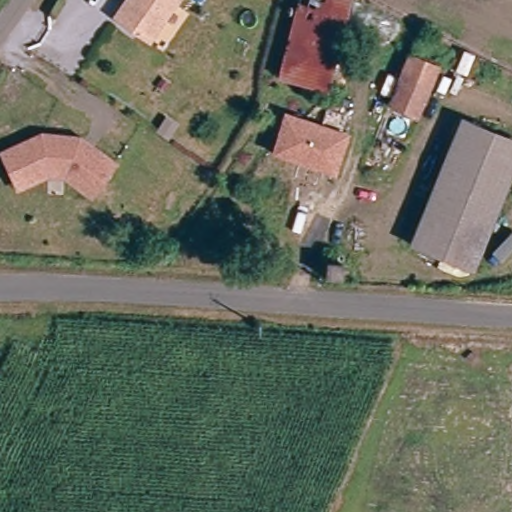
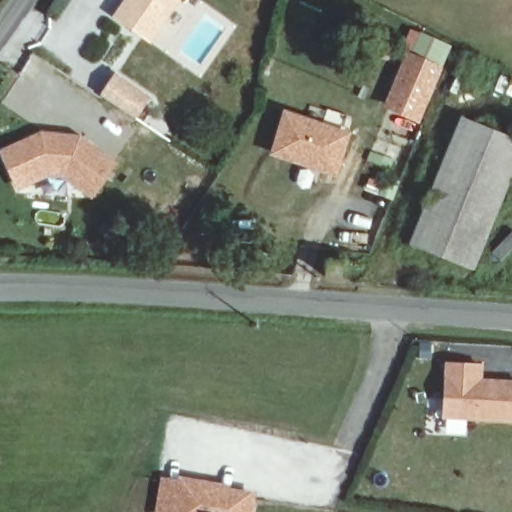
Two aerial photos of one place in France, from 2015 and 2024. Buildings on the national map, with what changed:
unchanged [(113,21),(127,0),(178,0),(156,32),(148,45),(133,34),(113,21)]
unchanged [(391,109),(411,57),(439,66),(419,119),(391,109)]
unchanged [(326,171),(269,152),(283,111),(347,133),(336,166),(333,174),(326,171)]
unchanged [(471,190),(444,179),(469,118),(496,129),(471,190)]
unchanged [(512,135),(512,177),(475,265),(419,243),(444,179),(471,190),(496,129),(512,135)]
unchanged [(75,180),(62,170),(45,171),(15,185),(0,150),(39,132),(75,134),(110,159),(94,181),(88,190),(75,180)]
new [(485,364),(484,380),(512,381),(512,426),(442,422),(446,363),(485,364)]
new [(178,480),(179,475),(231,485),(230,488),(256,494),(254,512),(154,512),(161,476),(178,480)]

